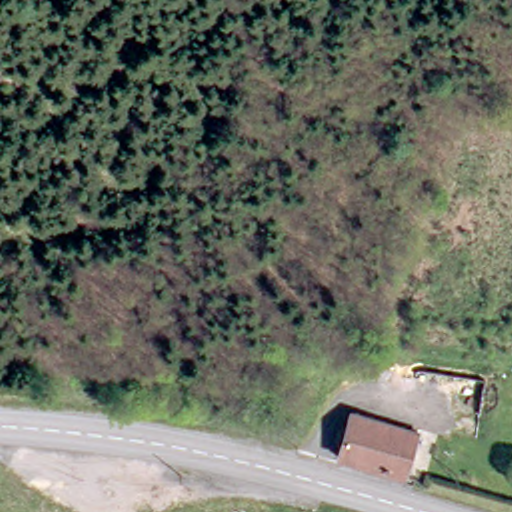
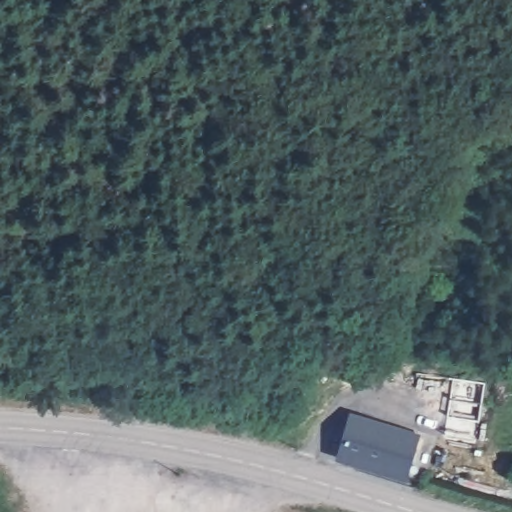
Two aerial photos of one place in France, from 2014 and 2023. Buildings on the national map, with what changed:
unchanged [(416,438),(405,482),(337,461),(349,418),(416,438)]

